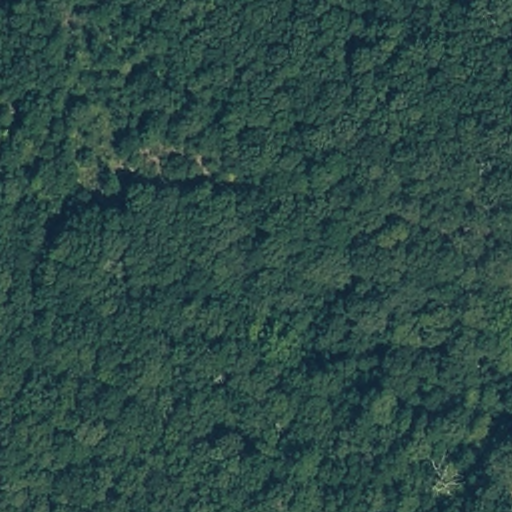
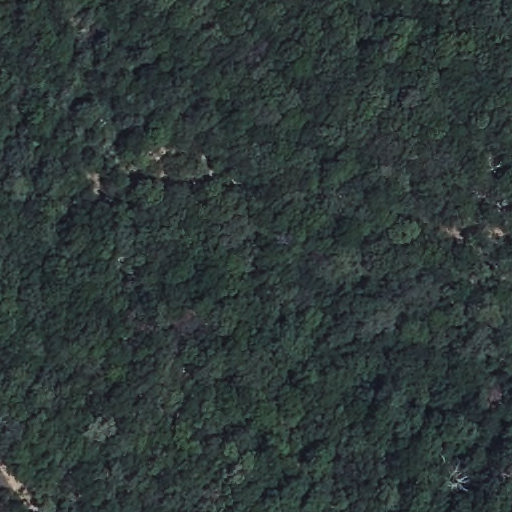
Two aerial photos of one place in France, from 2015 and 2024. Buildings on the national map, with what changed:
[]

